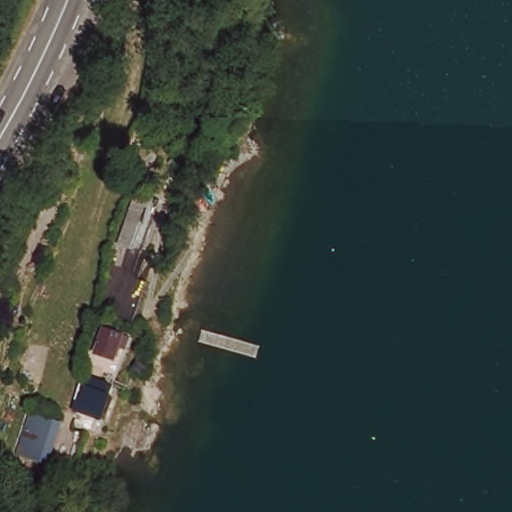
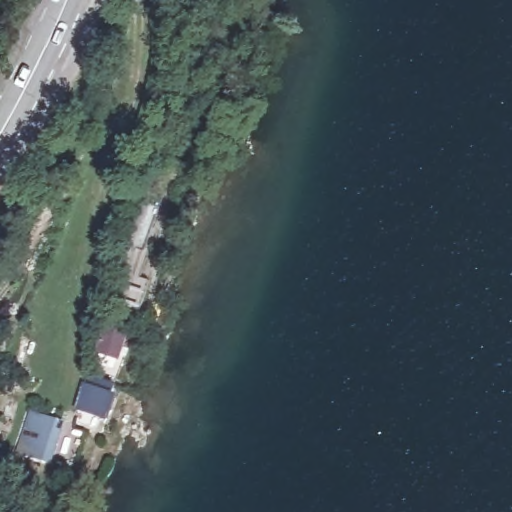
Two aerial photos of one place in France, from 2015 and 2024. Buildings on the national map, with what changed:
unchanged [(130,252),(140,222),(147,201),(159,206),(152,225),(140,256),(130,252)]
unchanged [(112,330),(128,337),(120,354),(116,353),(109,368),(99,362),(112,330)]
unchanged [(90,392),(110,399),(102,419),(85,412),(90,392)]
unchanged [(32,416),(64,426),(52,465),(20,455),(32,416)]

